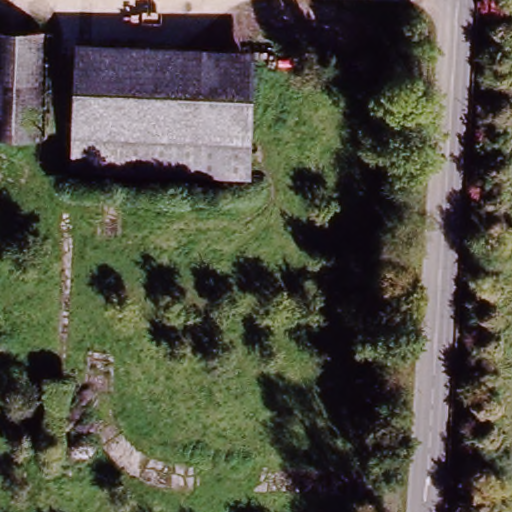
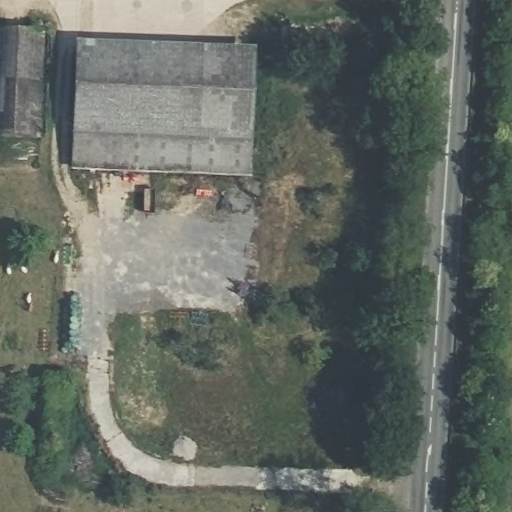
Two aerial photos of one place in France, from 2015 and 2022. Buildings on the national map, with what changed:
unchanged [(47,30),(46,53),(41,134),(0,133),(0,28),(47,30)]
unchanged [(252,53),(249,142),(114,137),(71,135),(73,59),(74,44),(210,51),(252,53)]
unchanged [(71,135),(114,137),(249,142),(247,176),(69,168),(71,135)]
unchanged [(45,367),(67,368),(65,446),(43,446),(45,367)]

